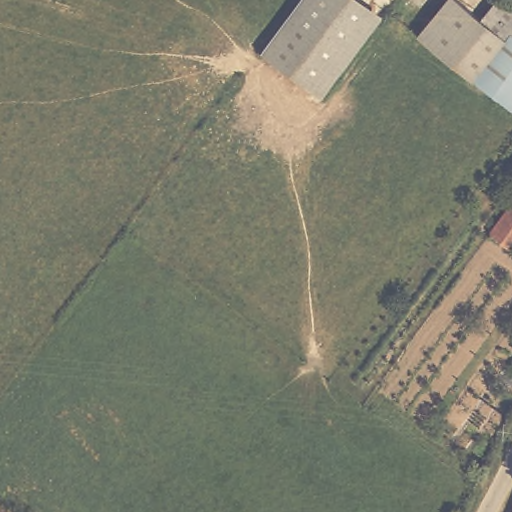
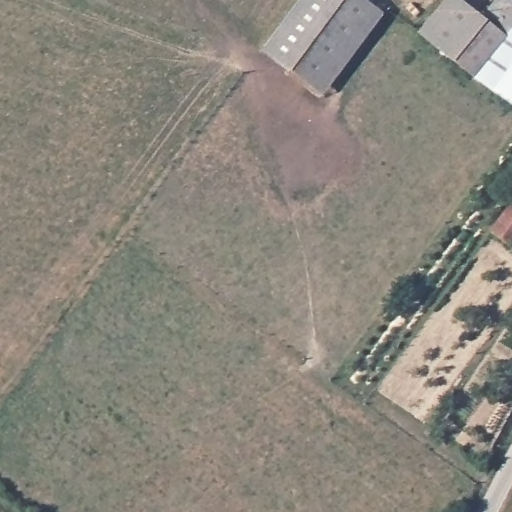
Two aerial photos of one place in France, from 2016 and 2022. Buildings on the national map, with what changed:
unchanged [(320,87),(270,50),(305,0),(376,0),(380,3),(320,87)]
unchanged [(445,0),(450,0),(478,19),(491,0),(502,0),(512,7),(512,103),(418,40),(445,0)]
unchanged [(512,234),(504,245),(482,231),(510,191),(512,192),(512,234)]
unchanged [(512,512),(510,511),(512,507),(512,512)]

